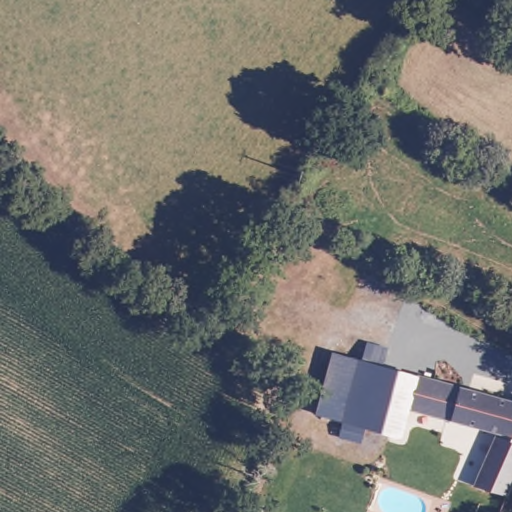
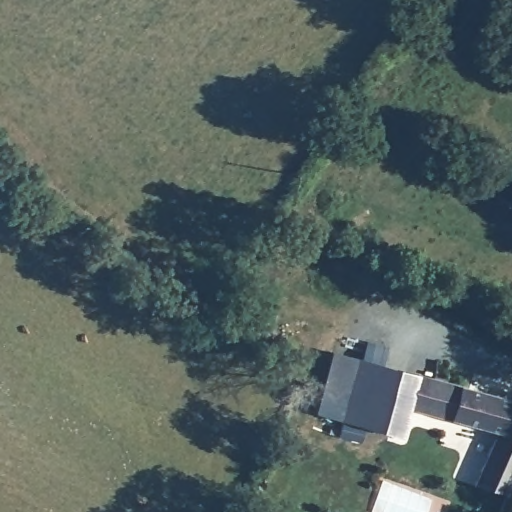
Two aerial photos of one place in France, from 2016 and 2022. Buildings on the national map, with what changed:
unchanged [(328,338),(354,348),(352,353),(333,408),(307,398),(322,356),(328,338)]
unchanged [(352,353),(354,348),(368,352),(412,367),(411,368),(512,402),(512,469),(506,482),(502,496),(465,484),(471,469),(485,429),(400,399),(390,427),(333,408),(352,353)]

